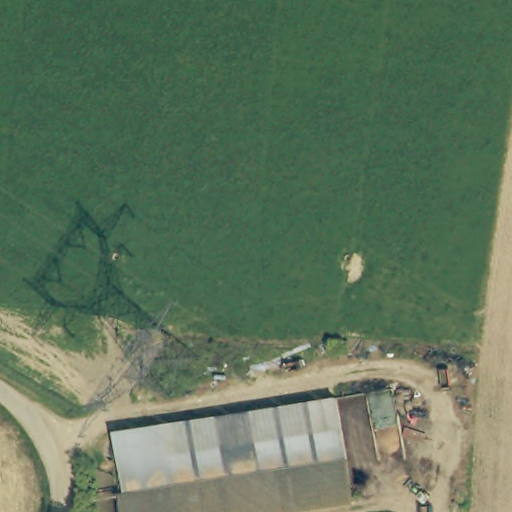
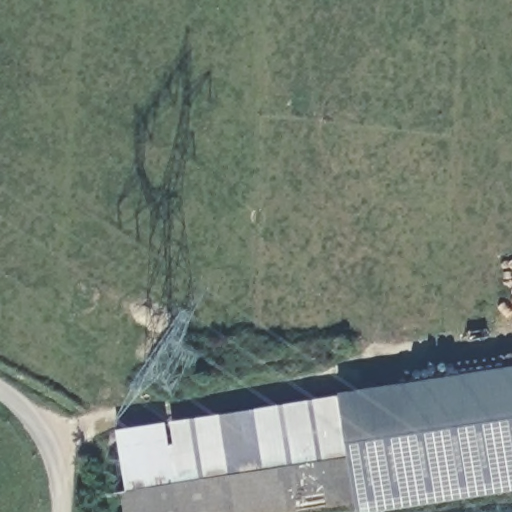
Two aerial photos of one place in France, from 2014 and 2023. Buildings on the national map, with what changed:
new [(512,369),(512,493),(386,512),(356,512),(354,499),(340,399),(339,395),(512,369)]
unchanged [(259,512),(124,512),(122,500),(121,492),(126,491),(117,430),(123,429),(340,399),(354,499),(259,512)]

